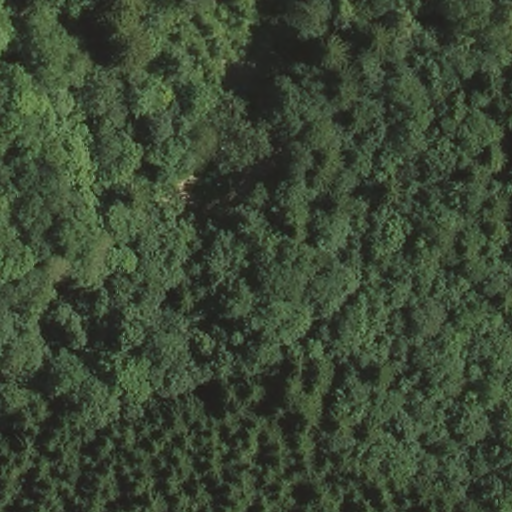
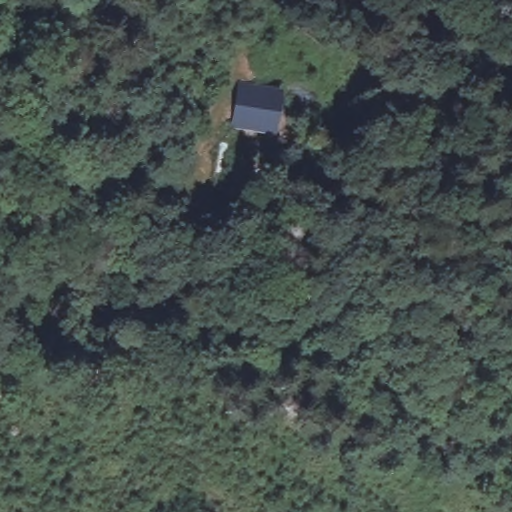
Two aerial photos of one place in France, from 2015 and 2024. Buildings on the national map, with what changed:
demolished [(278,67),(290,70),(293,70),(286,109),(272,107),(278,67)]
new [(237,80),(285,88),(276,135),(230,127),(237,80)]

